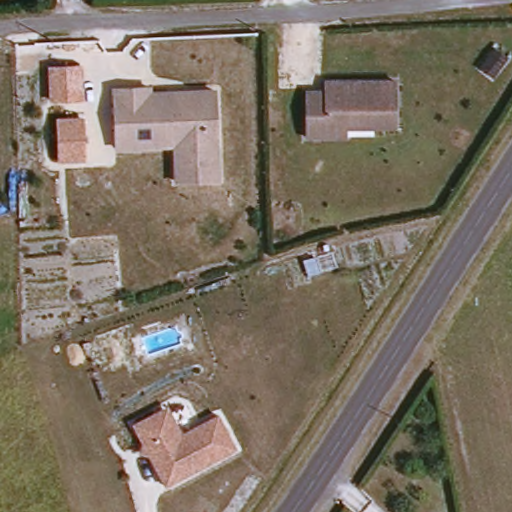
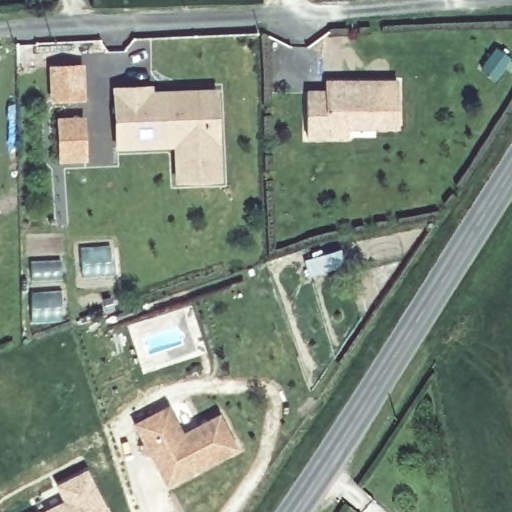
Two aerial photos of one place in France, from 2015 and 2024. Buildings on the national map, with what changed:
unchanged [(51,62),(83,62),(85,99),(53,100),(51,62)]
unchanged [(351,137),(310,138),(309,93),(328,92),(328,82),(399,80),(401,126),(379,126),(350,127),(351,137)]
unchanged [(173,169),(172,150),(112,153),(111,138),(109,94),(144,92),(144,98),(166,96),(182,95),(210,94),(215,167),(216,183),(174,186),(173,169)]
unchanged [(56,118),(87,116),(89,164),(59,166),(56,118)]
unchanged [(150,456),(140,454),(146,443),(136,422),(172,405),(184,432),(222,412),(240,449),(168,488),(150,456)]
new [(54,484),(86,467),(110,512),(37,512),(61,499),(54,484)]

